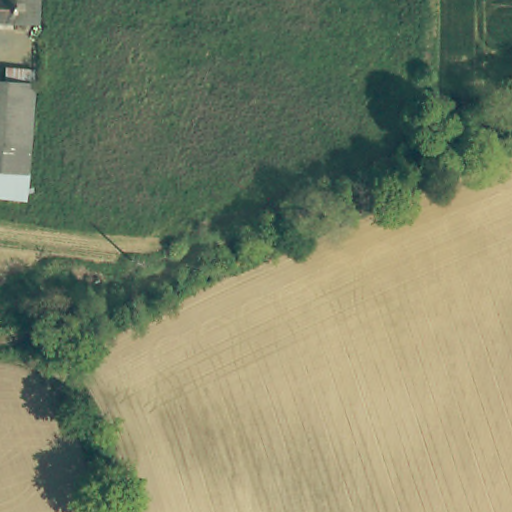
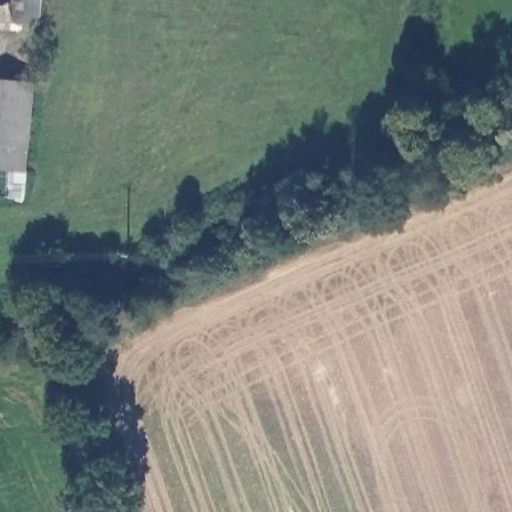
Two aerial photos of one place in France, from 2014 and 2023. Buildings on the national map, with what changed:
unchanged [(0,22),(0,0),(41,0),(39,25),(0,22)]
unchanged [(5,81),(7,55),(31,57),(37,84),(30,173),(26,201),(0,199),(0,81),(5,81)]

